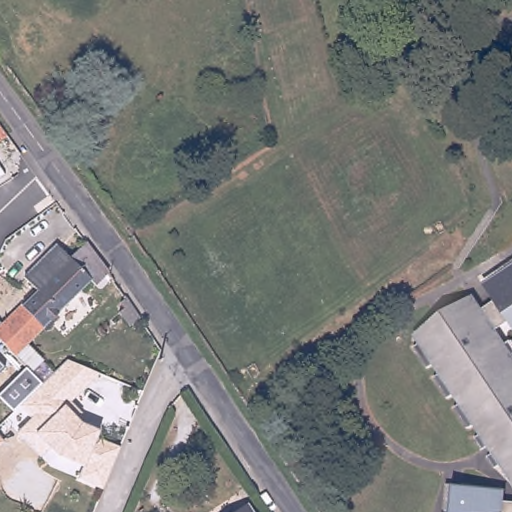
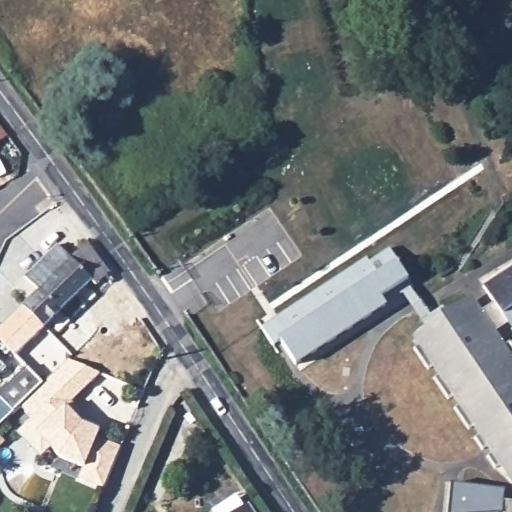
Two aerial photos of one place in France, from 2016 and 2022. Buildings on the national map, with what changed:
unchanged [(0,146),(0,117),(14,136),(0,146)]
unchanged [(27,278),(59,245),(72,257),(89,242),(112,271),(98,286),(93,281),(18,355),(0,336),(0,328),(39,291),(27,278)]
new [(386,304),(295,365),(279,342),(271,346),(259,330),(365,259),(367,262),(387,250),(405,279),(410,288),(386,304)]
unchanged [(503,466),(496,471),(489,459),(495,455),(490,447),(483,451),(476,440),(482,436),(476,426),(469,431),(456,410),(462,405),(456,396),(449,400),(435,380),(442,375),(436,366),(429,370),(415,349),(422,345),(418,339),(473,302),(480,313),(495,304),(484,287),(512,268),(512,321),(494,333),(503,347),(510,342),(512,345),(512,357),(511,358),(512,359),(512,480),(503,466)]
unchanged [(141,317),(129,326),(119,312),(126,308),(122,302),(128,297),(141,317)]
unchanged [(94,427),(102,431),(99,439),(121,447),(106,491),(80,481),(83,468),(59,459),(51,451),(41,460),(17,432),(30,419),(19,407),(68,360),(101,374),(71,401),(94,427)]
unchanged [(0,372),(0,362),(5,367),(0,372)]
unchanged [(0,392),(26,367),(42,385),(19,407),(12,413),(0,400),(0,392)]
unchanged [(451,487),(505,493),(504,504),(512,505),(512,512),(449,512),(451,487)]
unchanged [(253,503),(260,512),(239,512),(253,503)]
unchanged [(123,507),(136,512),(120,512),(123,507)]

